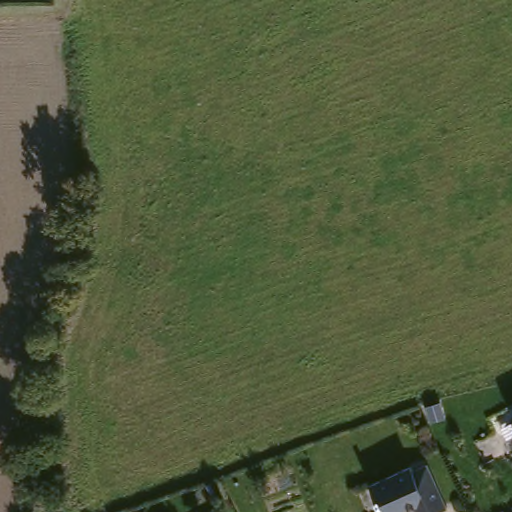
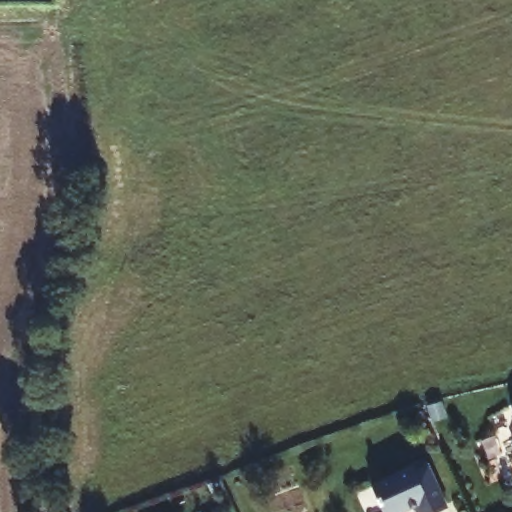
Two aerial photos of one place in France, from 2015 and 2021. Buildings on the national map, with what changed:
unchanged [(507,411),(512,408),(512,434),(503,418),(507,411)]
unchanged [(512,434),(512,459),(502,439),(512,434)]
unchanged [(416,462),(418,467),(432,461),(452,502),(428,512),(423,512),(418,503),(399,512),(390,512),(376,481),(416,462)]
unchanged [(167,510),(170,512),(164,512),(167,510)]

